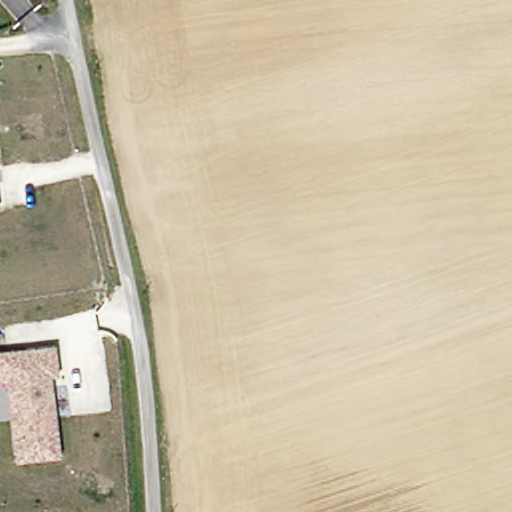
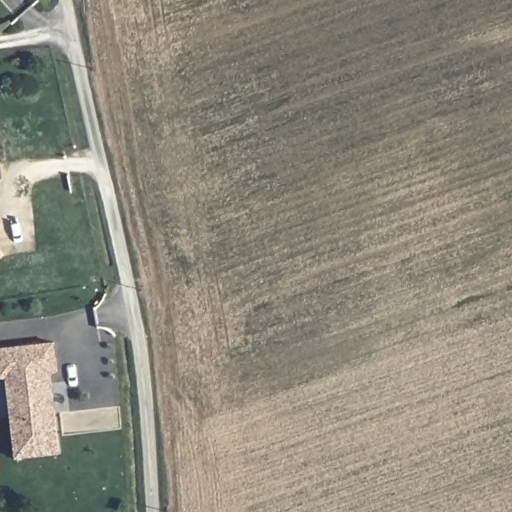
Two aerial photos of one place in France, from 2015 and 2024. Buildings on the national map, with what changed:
unchanged [(51,372),(60,453),(16,458),(8,377),(0,377),(0,373),(0,348),(27,346),(56,343),(59,372),(51,372)]

